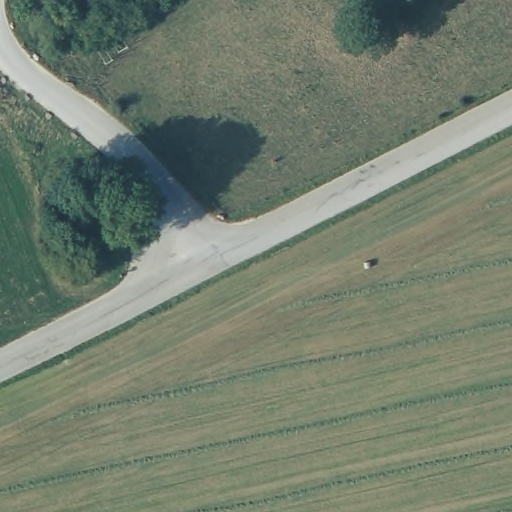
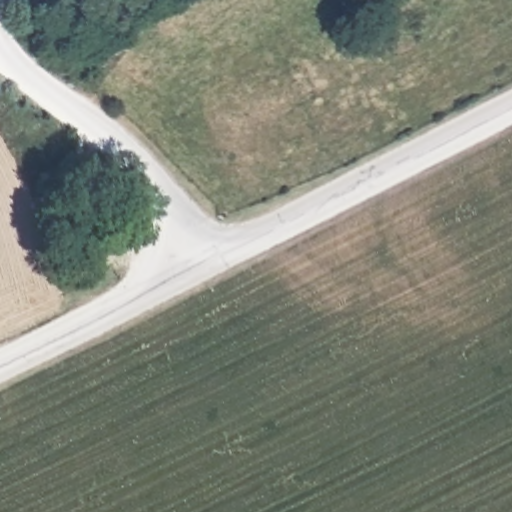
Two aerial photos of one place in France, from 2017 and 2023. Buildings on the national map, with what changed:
[]

